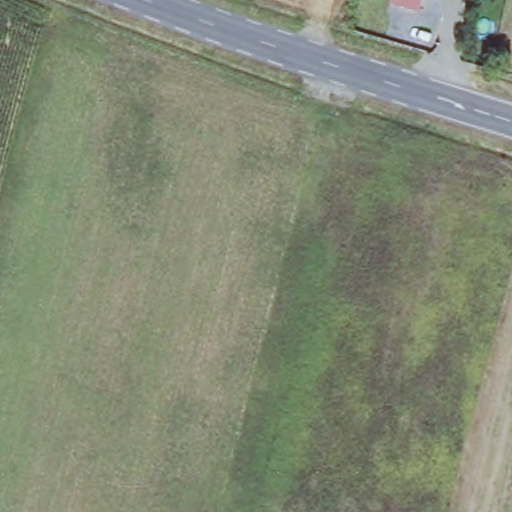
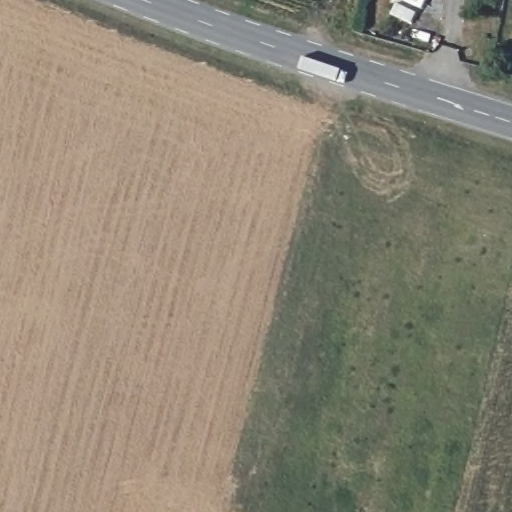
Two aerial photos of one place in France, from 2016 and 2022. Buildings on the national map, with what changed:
[]

